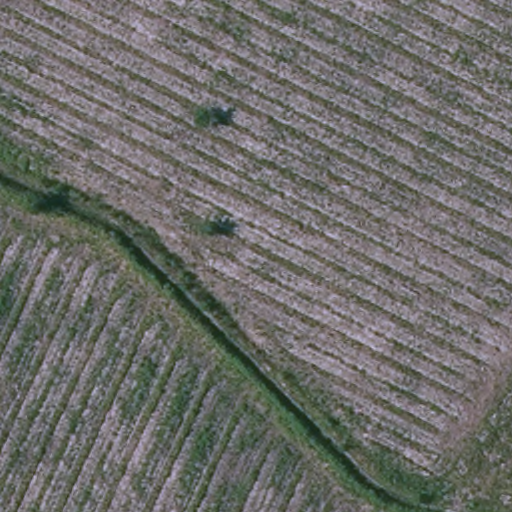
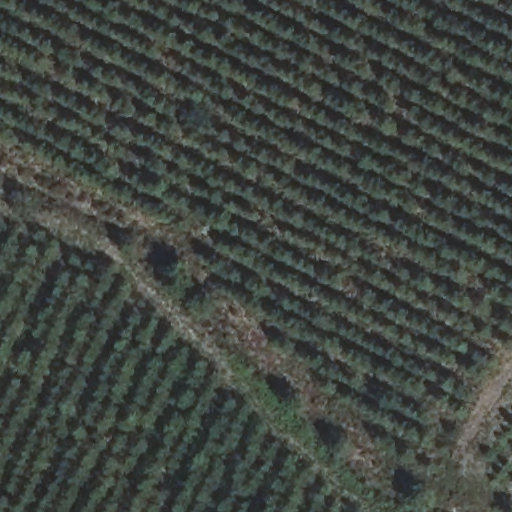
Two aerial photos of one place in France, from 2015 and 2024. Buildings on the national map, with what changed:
[]

